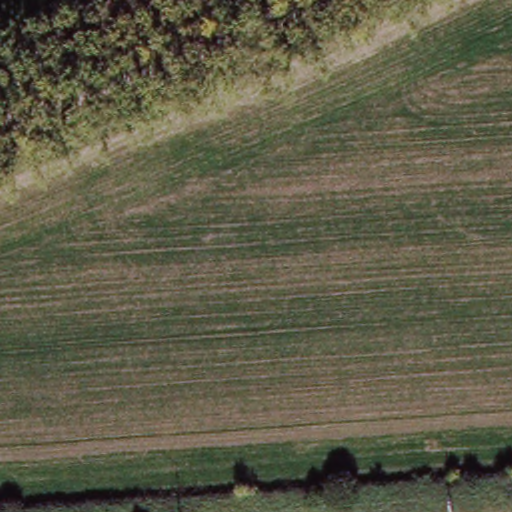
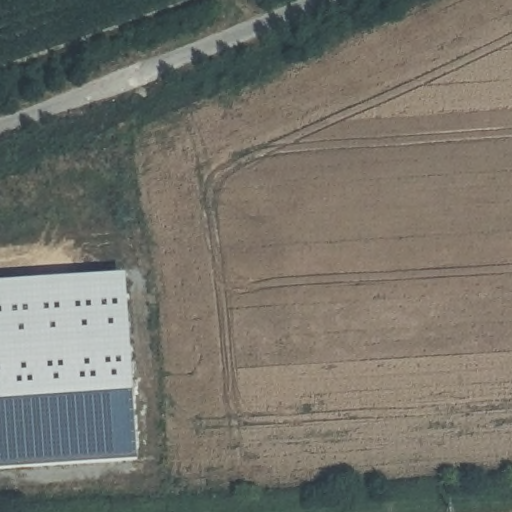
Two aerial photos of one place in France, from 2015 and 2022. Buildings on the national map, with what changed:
new [(125,271),(134,456),(0,464),(0,280),(125,271)]

